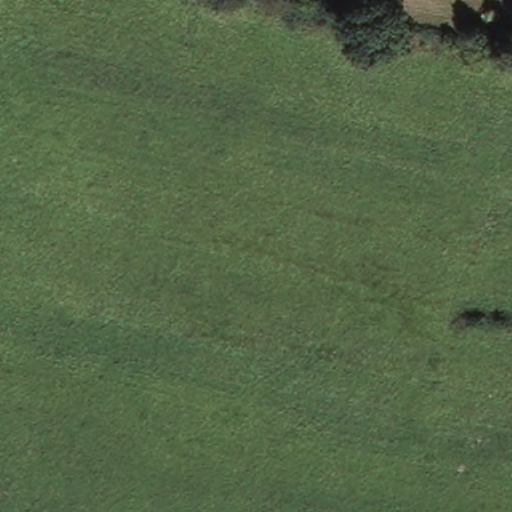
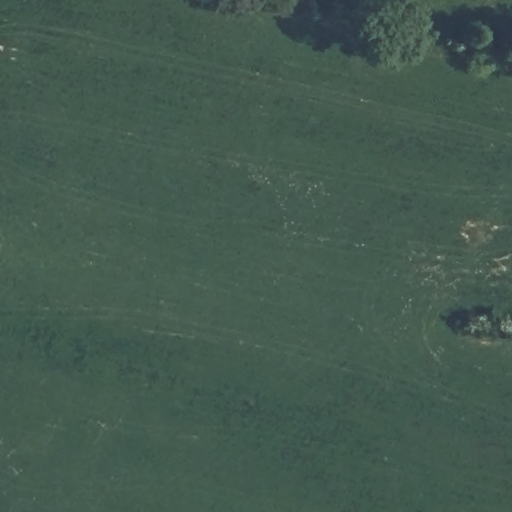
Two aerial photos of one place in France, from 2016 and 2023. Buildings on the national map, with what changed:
[]

